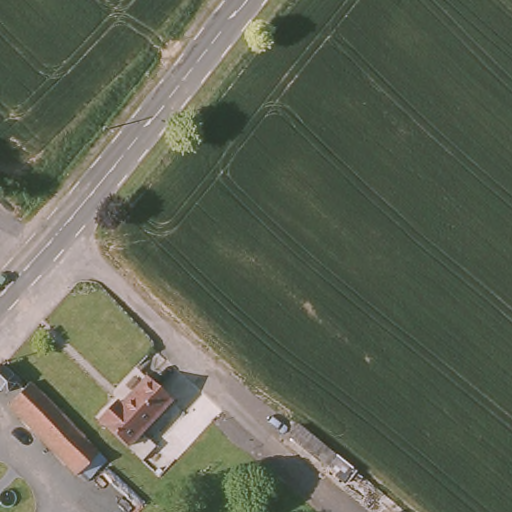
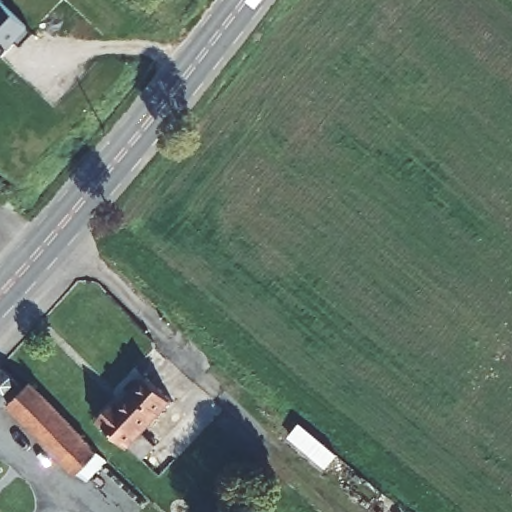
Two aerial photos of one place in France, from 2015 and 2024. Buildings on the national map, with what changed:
new [(7,49),(2,45),(0,47),(0,2),(27,27),(7,49)]
unchanged [(15,387),(12,391),(9,392),(4,391),(0,387),(0,375),(6,368),(17,381),(15,387)]
unchanged [(175,397),(130,445),(99,414),(116,395),(121,399),(148,370),(175,397)]
unchanged [(39,386),(55,405),(104,461),(80,480),(17,406),(32,392),(39,386)]

